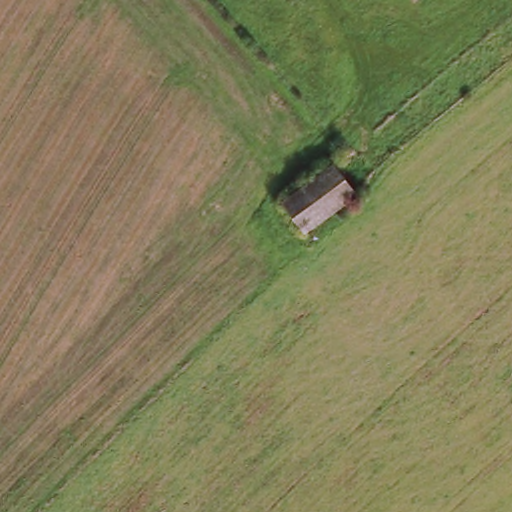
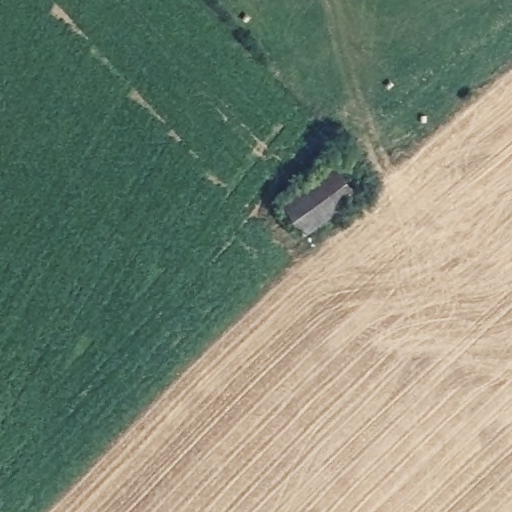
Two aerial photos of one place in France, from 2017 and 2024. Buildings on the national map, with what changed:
unchanged [(360,199),(305,240),(282,206),(334,168),(360,199)]

